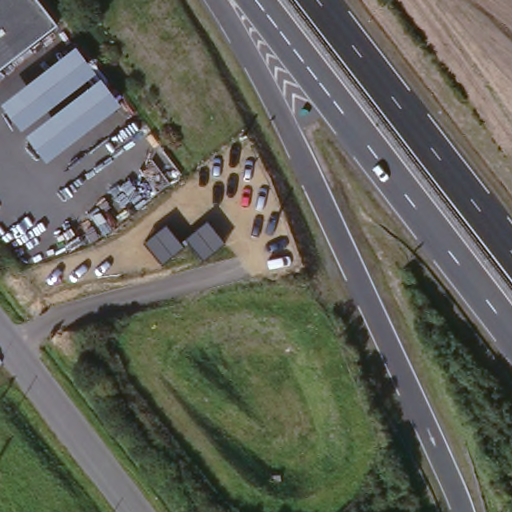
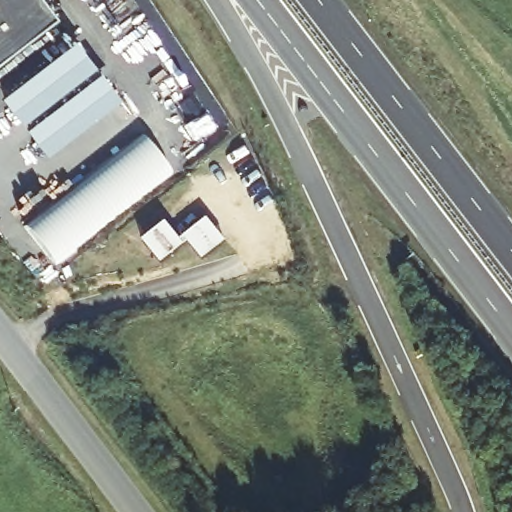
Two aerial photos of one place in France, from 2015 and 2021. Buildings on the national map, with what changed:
unchanged [(0,68),(0,0),(31,0),(53,27),(0,68)]
unchanged [(21,132),(0,108),(0,107),(75,49),(95,74),(21,132)]
unchanged [(44,164),(24,137),(100,81),(120,107),(44,164)]
new [(149,143),(168,166),(48,259),(30,235),(149,143)]
unchanged [(164,225),(178,243),(206,221),(224,245),(200,263),(186,245),(159,266),(141,242),(164,225)]

